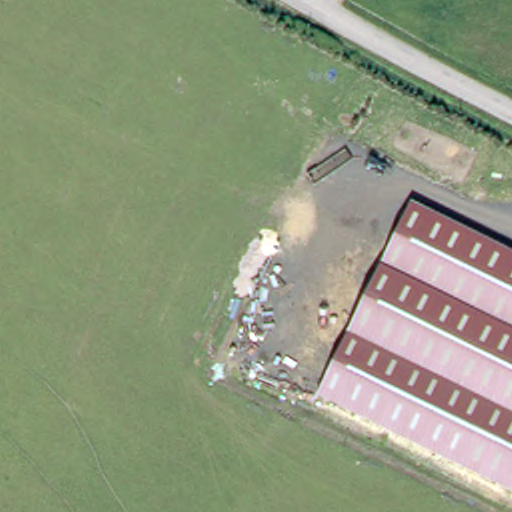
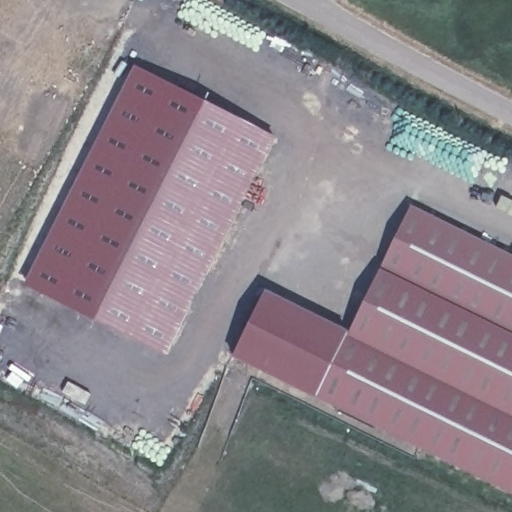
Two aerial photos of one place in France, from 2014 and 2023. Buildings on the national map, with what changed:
new [(275,141),(159,349),(28,280),(134,70),(275,141)]
unchanged [(349,334),(381,270),(412,206),(512,255),(512,492),(318,397),(349,334)]
new [(318,397),(234,355),(266,292),(349,334),(318,397)]

